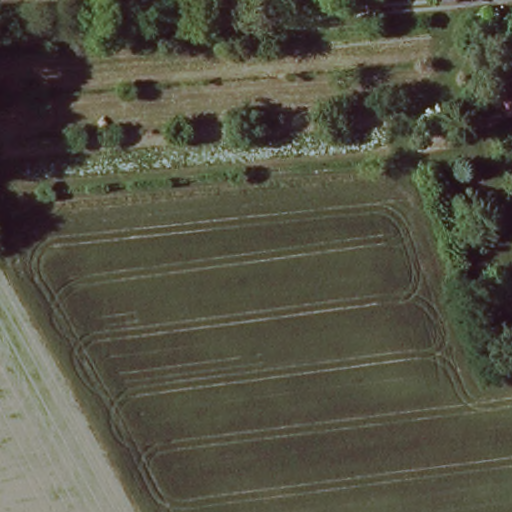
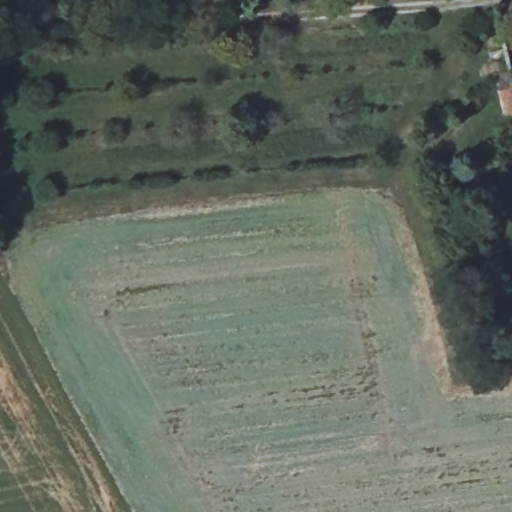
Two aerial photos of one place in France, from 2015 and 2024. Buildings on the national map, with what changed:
unchanged [(512,71),(512,126),(503,127),(494,74),(512,71)]

